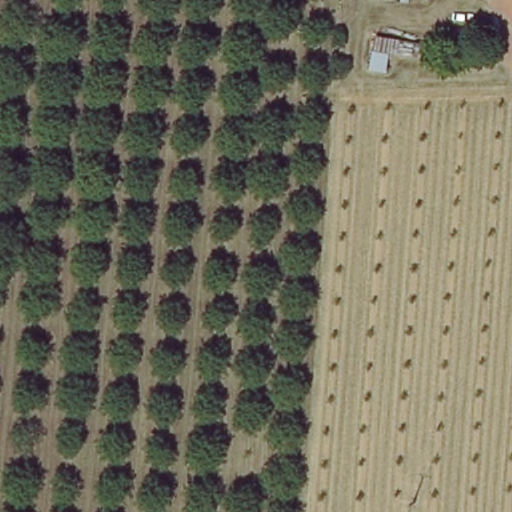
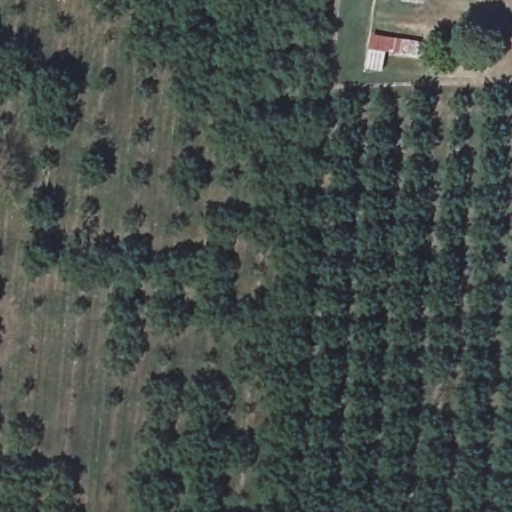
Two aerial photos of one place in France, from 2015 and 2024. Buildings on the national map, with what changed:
unchanged [(388,55),(384,72),(366,71),(371,36),(421,42),(418,57),(388,55)]

